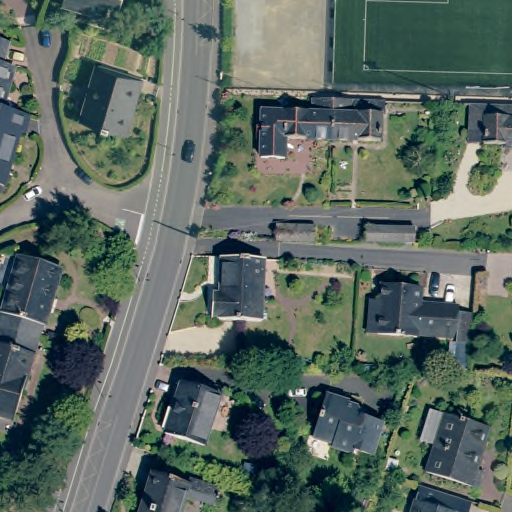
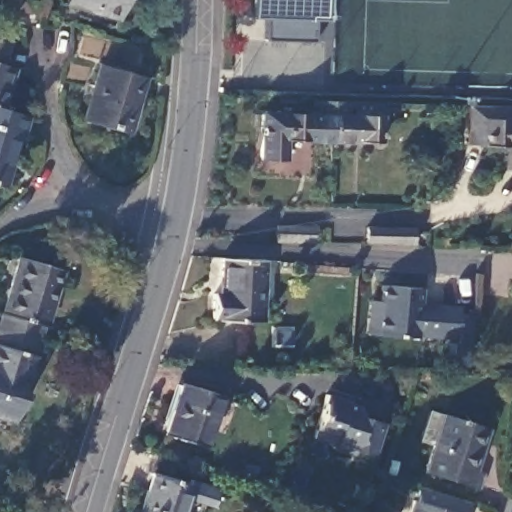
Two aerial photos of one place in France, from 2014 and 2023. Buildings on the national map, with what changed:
unchanged [(124,0),(119,19),(63,3),(64,0),(124,0)]
new [(326,0),(326,19),(316,19),(314,40),(267,39),(267,17),(252,16),(253,0),(326,0)]
unchanged [(3,65),(14,68),(7,90),(5,89),(0,106),(0,39),(10,42),(3,65)]
unchanged [(89,99),(94,101),(97,89),(92,88),(99,64),(143,78),(127,133),(83,120),(89,99)]
unchanged [(331,140),(285,139),(284,159),(281,159),(260,159),(262,112),(282,113),(308,114),(308,109),(312,109),(313,100),(332,100),(331,140)]
unchanged [(384,103),(383,115),(381,115),(381,142),(331,140),(332,100),(384,103)]
unchanged [(512,106),(512,146),(483,145),(483,144),(468,144),(469,105),(484,105),(491,105),(512,106)]
unchanged [(25,114),(4,188),(0,187),(0,106),(5,108),(25,114)]
unchanged [(313,227),(312,242),(277,240),(277,225),(278,225),(313,227)]
unchanged [(408,244),(397,243),(362,242),(362,227),(398,228),(409,229),(408,244)]
unchanged [(23,252),(66,264),(49,322),(47,320),(42,335),(17,329),(2,324),(23,252)]
unchanged [(262,322),(220,320),(220,318),(212,318),(212,294),(221,294),(222,258),(263,259),(262,322)]
unchanged [(371,295),(381,296),(382,279),(422,283),(420,299),(459,302),(456,334),(417,330),(417,334),(377,330),(367,329),(371,295)]
unchanged [(0,413),(0,332),(2,324),(17,329),(42,335),(18,418),(0,413)]
unchanged [(221,395),(204,448),(165,435),(182,382),(221,395)]
unchanged [(338,395),(341,396),(340,398),(352,402),(356,409),(354,415),(361,418),(362,414),(380,419),(370,453),(351,447),(350,451),(326,443),(327,439),(326,439),(307,433),(321,389),(338,395)]
unchanged [(419,447),(429,415),(443,419),(489,434),(476,475),(482,477),(477,494),(426,479),(434,451),(419,447)]
unchanged [(184,489),(185,484),(215,494),(208,512),(180,503),(177,512),(137,512),(147,478),(184,489)]
unchanged [(415,497),(425,499),(442,505),(465,512),(410,512),(415,497)]

